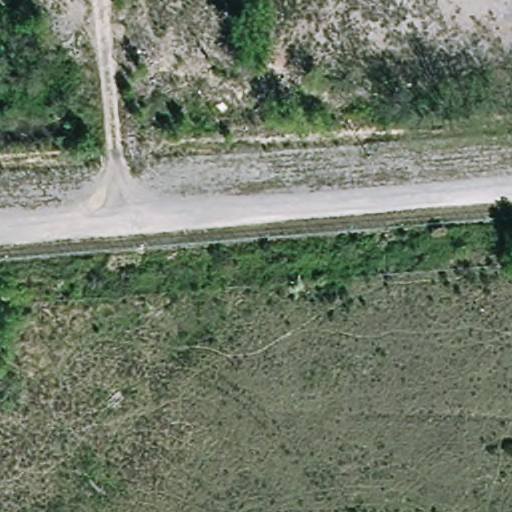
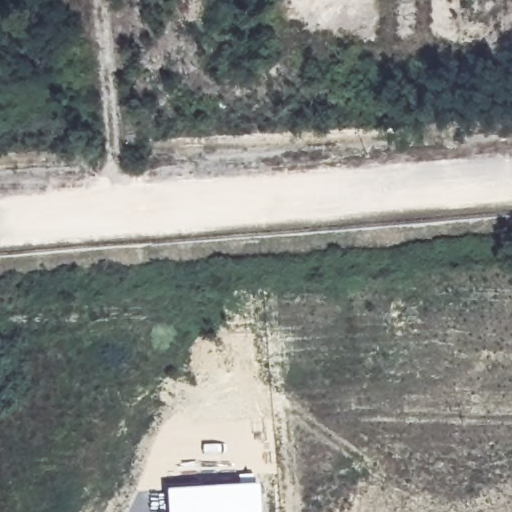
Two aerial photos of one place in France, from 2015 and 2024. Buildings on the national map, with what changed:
new [(257,484),(259,512),(167,512),(166,490),(257,484)]

